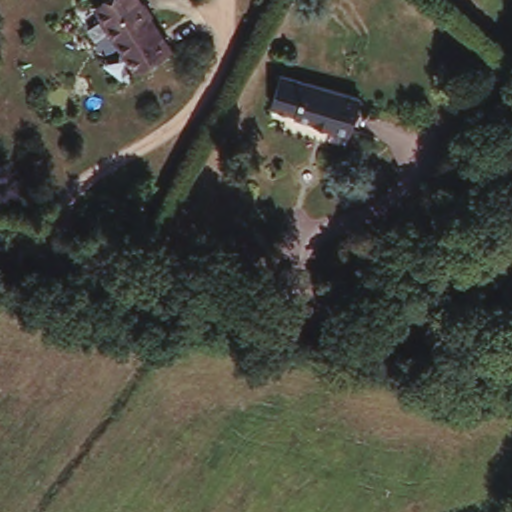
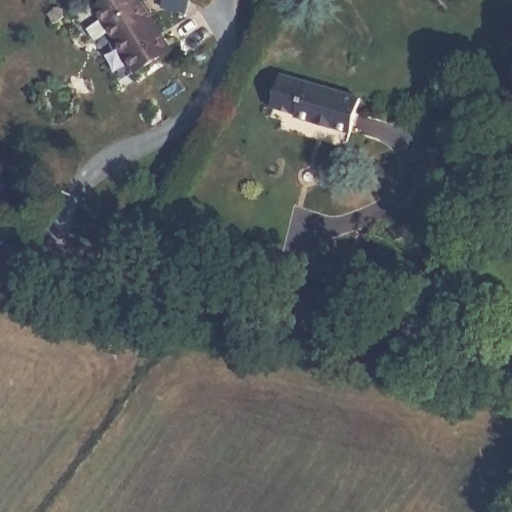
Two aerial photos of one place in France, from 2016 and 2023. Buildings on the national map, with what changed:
unchanged [(116,0),(144,0),(172,47),(129,72),(96,11),(116,0)]
unchanged [(293,120),(270,109),(278,74),(303,79),(293,120)]
unchanged [(347,133),(293,120),(303,79),(357,93),(347,133)]

